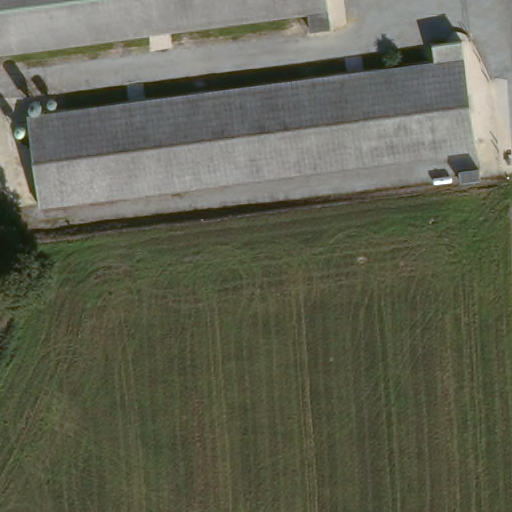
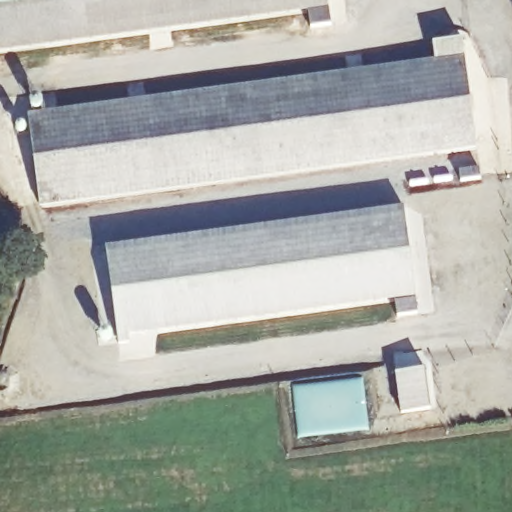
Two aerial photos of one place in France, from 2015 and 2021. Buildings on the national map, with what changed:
unchanged [(342,9),(0,54),(0,0),(341,0),(342,9)]
unchanged [(45,206),(33,115),(440,63),(438,43),(467,39),(482,147),(45,206)]
unchanged [(460,171),(480,168),(481,179),(461,182),(460,171)]
new [(416,297),(418,313),(398,316),(396,299),(129,334),(131,343),(120,344),(106,246),(404,205),(416,297)]
new [(426,368),(431,409),(401,413),(396,372),(426,368)]

